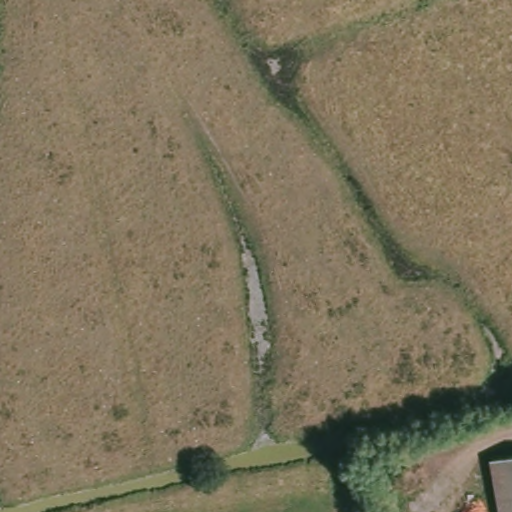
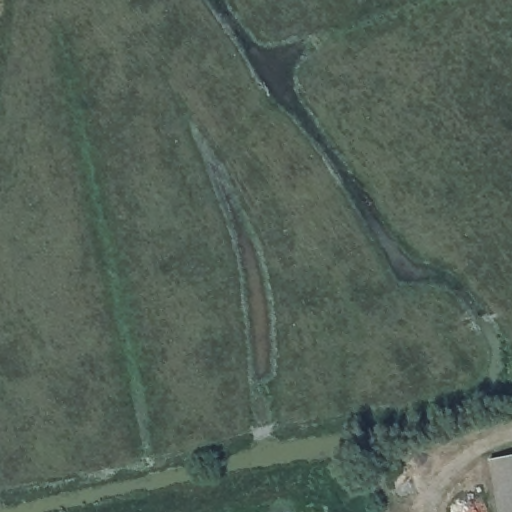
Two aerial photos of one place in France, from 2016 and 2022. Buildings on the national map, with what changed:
unchanged [(498,512),(488,463),(512,459),(512,512),(498,512)]

